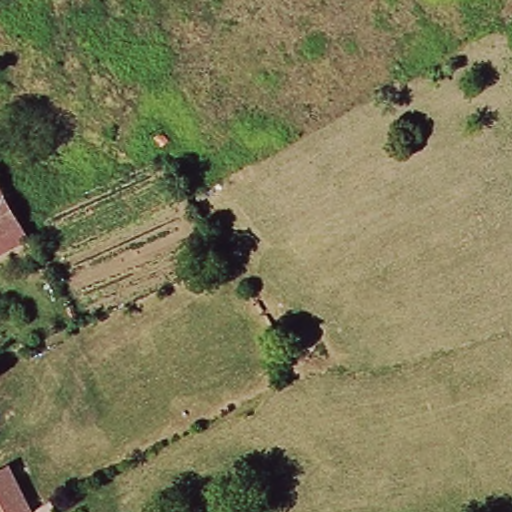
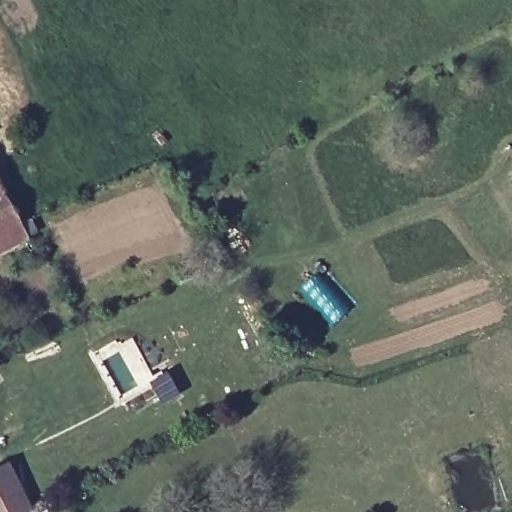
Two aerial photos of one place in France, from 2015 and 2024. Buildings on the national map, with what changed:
unchanged [(0,236),(0,194),(18,225),(0,236)]
unchanged [(32,512),(0,512),(0,471),(10,466),(32,512)]

